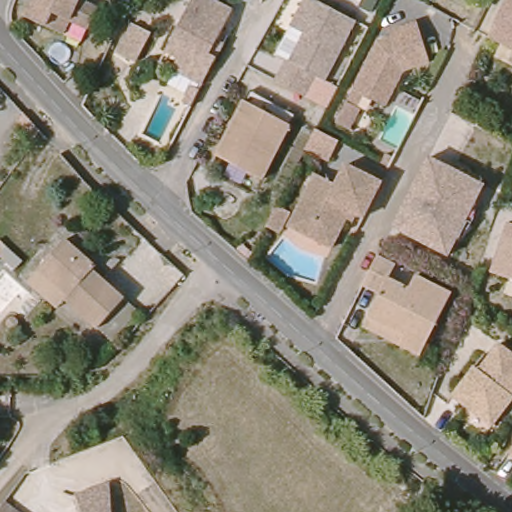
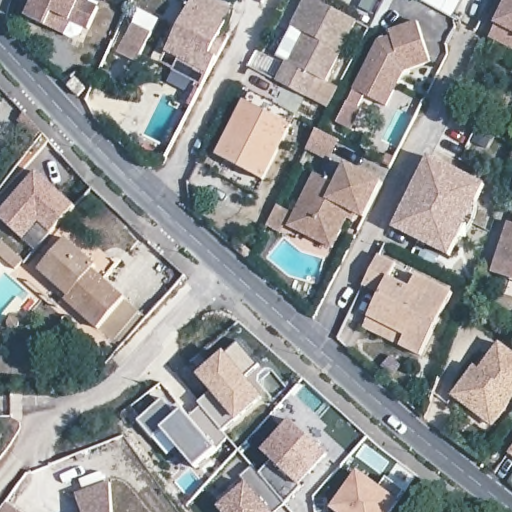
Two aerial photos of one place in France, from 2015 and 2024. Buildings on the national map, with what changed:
unchanged [(55,30),(18,13),(24,0),(83,0),(90,3),(80,24),(73,38),(55,30)]
unchanged [(169,70),(175,59),(161,52),(188,0),(208,0),(228,11),(213,41),(220,44),(212,58),(204,74),(198,85),(169,70)]
unchanged [(360,21),(327,87),(321,83),(313,99),(278,84),(291,56),(297,61),(311,34),(295,23),(307,0),(319,0),(360,21)]
unchanged [(512,54),(480,38),(500,0),(512,0),(512,54)]
unchanged [(391,102),(359,86),(383,37),(397,33),(395,28),(423,19),(436,59),(409,68),(403,80),(391,102)]
unchanged [(137,62),(118,53),(133,23),(152,33),(137,62)]
unchanged [(78,97),(68,86),(75,79),(85,89),(78,97)]
unchanged [(195,91),(187,107),(178,103),(186,86),(195,91)]
unchanged [(217,156),(245,103),(250,93),(296,117),(291,126),(263,180),(217,156)]
unchanged [(330,161),(307,149),(316,130),(340,142),(330,161)]
unchanged [(429,158),(484,186),(448,257),(393,229),(429,158)]
unchanged [(321,237),(290,221),(316,170),(337,180),(347,161),(382,179),(365,213),(358,209),(354,218),(346,214),(337,232),(332,243),(321,237)]
new [(38,173),(75,207),(35,251),(0,219),(0,215),(38,173)]
unchanged [(280,229),(267,222),(277,200),(290,207),(280,229)]
unchanged [(503,217),(510,219),(512,214),(512,275),(486,267),(503,217)]
unchanged [(33,277),(45,264),(71,236),(101,262),(98,266),(130,294),(102,324),(70,295),(63,303),(33,277)]
new [(22,263),(15,270),(0,257),(0,243),(22,263)]
unchanged [(367,319),(380,294),(364,286),(379,256),(396,265),(390,278),(411,289),(417,275),(453,294),(421,357),(400,346),(363,327),(367,319)]
unchanged [(512,402),(492,425),(455,396),(477,364),(481,368),(502,343),(512,350),(512,402)]
new [(203,381),(200,377),(211,368),(241,345),(260,368),(243,381),(260,401),(222,432),(200,407),(198,404),(212,392),(203,381)]
new [(163,399),(178,416),(184,411),(190,417),(200,407),(222,432),(227,438),(216,449),(195,468),(162,430),(152,438),(137,422),(163,399)]
new [(275,462),(263,452),(292,420),(327,456),(300,486),(283,503),(260,476),(275,462)]
new [(222,512),(211,500),(251,466),(283,503),(273,512),(222,512)]
new [(360,473),(382,490),(390,481),(405,492),(391,512),(338,512),(334,509),(360,473)]
unchanged [(110,484),(113,512),(82,512),(76,496),(110,484)]
new [(15,512),(0,512),(0,507),(3,503),(15,512)]

